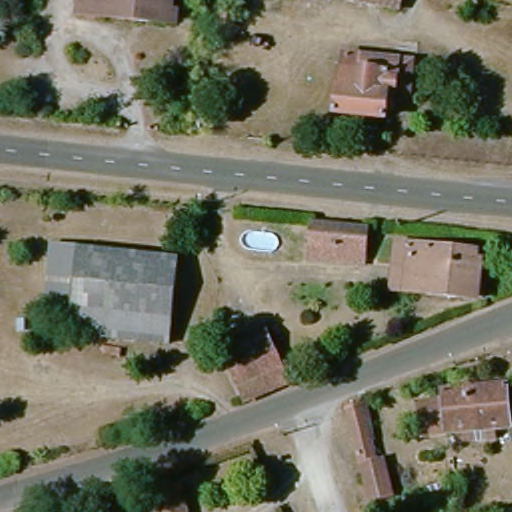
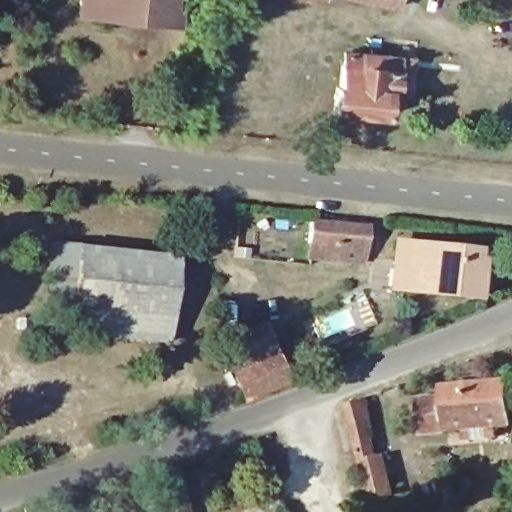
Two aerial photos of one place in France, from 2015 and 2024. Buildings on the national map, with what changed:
unchanged [(84,0),(175,0),(175,10),(175,23),(139,19),(82,11),(84,0)]
unchanged [(359,0),(398,0),(397,6),(359,0)]
unchanged [(386,116),(335,110),(339,90),(342,90),(345,65),(348,65),(349,53),(402,60),(421,64),(420,74),(419,84),(400,80),(400,94),(398,106),(387,105),(386,116)]
unchanged [(355,260),(312,255),(312,241),(306,239),(307,220),(363,225),(362,247),(362,260),(355,260)]
unchanged [(484,280),(482,293),(472,297),(450,294),(449,300),(441,298),(441,292),(407,287),(411,240),(455,246),(455,242),(482,245),(480,258),(479,278),(484,280)]
unchanged [(74,243),(179,255),(171,346),(77,336),(69,336),(71,312),(50,310),(56,241),(74,243)]
unchanged [(231,372),(246,365),(234,334),(258,323),(285,385),(245,401),(231,372)]
unchanged [(450,400),(449,390),(512,387),(512,428),(451,431),(426,432),(424,400),(450,400)]
unchanged [(399,497),(377,504),(368,463),(353,407),(364,401),(365,406),(374,402),(380,422),(375,425),(384,458),(389,457),(399,497)]
unchanged [(165,505),(161,490),(174,486),(185,485),(189,507),(190,512),(151,512),(150,508),(165,505)]

